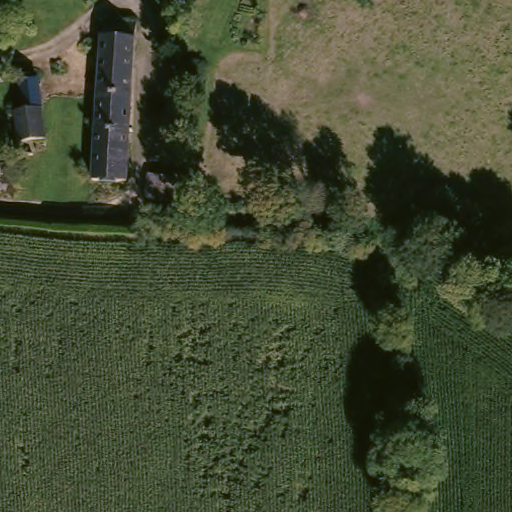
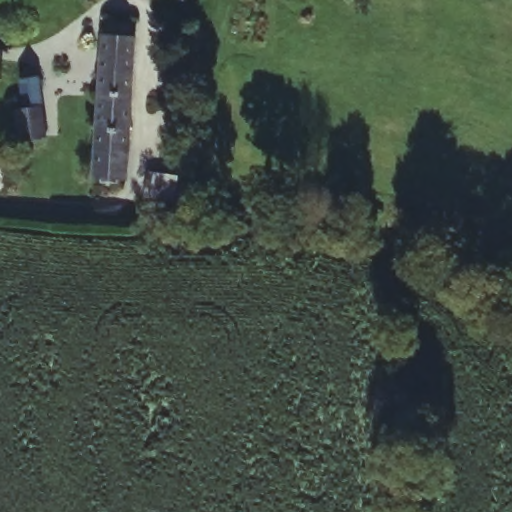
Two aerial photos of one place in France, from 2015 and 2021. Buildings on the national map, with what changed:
unchanged [(101,37),(103,34),(103,20),(136,22),(126,181),(92,179),(101,37)]
unchanged [(23,104),(20,75),(37,72),(47,134),(18,137),(14,106),(23,104)]
unchanged [(171,201),(144,198),(150,172),(174,177),(171,201)]

